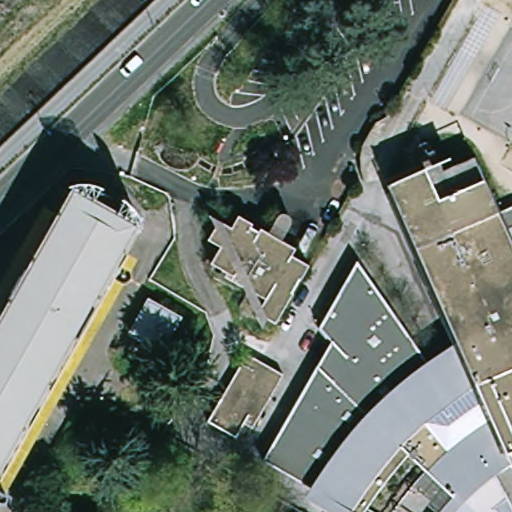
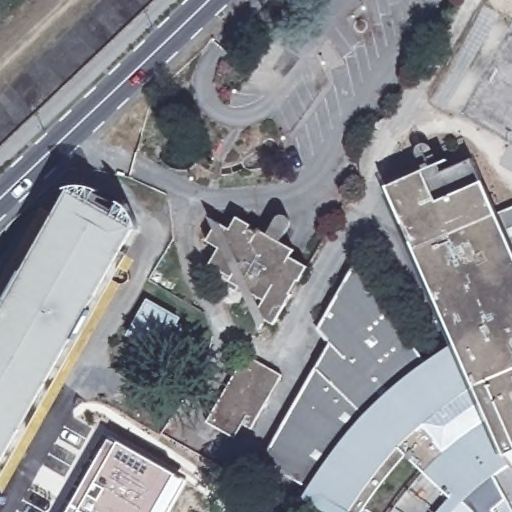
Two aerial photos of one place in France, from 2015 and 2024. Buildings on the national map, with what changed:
unchanged [(512,435),(512,450),(503,454),(489,465),(507,497),(493,510),(496,512),(350,512),(261,463),(327,343),(318,333),(315,330),(351,265),(355,270),(428,371),(457,353),(390,207),(381,187),(408,175),(416,171),(413,165),(407,153),(424,145),(425,145),(433,163),(425,167),(428,176),(467,158),(493,215),(512,206),(512,368),(486,380),(512,435)]
unchanged [(136,222),(0,462),(0,317),(73,187),(136,222)]
unchanged [(230,229),(237,217),(251,225),(249,229),(257,233),(259,230),(266,234),(275,219),(276,217),(277,216),(280,215),(281,215),(283,215),(285,215),(286,216),(288,218),(289,219),(290,221),(290,223),(290,225),(280,242),(293,250),(290,257),(307,267),(273,325),(256,314),(263,301),(239,287),(229,281),(231,277),(209,265),(218,248),(206,241),(217,222),(230,229)]
unchanged [(180,320),(161,352),(130,333),(150,301),(180,320)]
unchanged [(248,427),(240,422),(233,433),(232,436),(206,422),(243,355),(254,361),(278,374),(248,427)]
unchanged [(512,368),(512,435),(486,380),(512,368)]
new [(118,443),(120,441),(177,474),(187,480),(169,512),(68,512),(110,439),(118,443)]
unchanged [(507,459),(503,454),(512,450),(512,466),(511,466),(507,459)]

